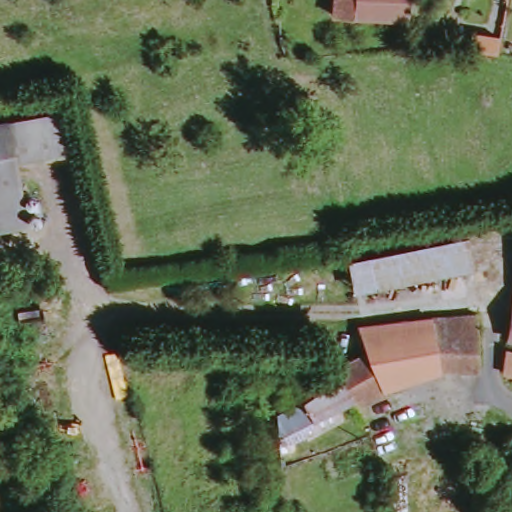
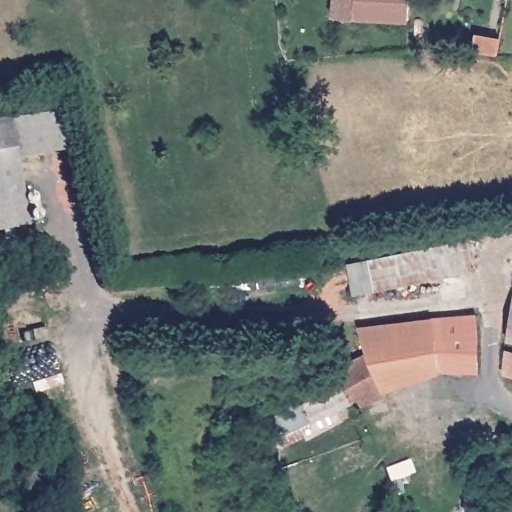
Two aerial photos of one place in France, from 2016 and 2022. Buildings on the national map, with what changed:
unchanged [(334,16),(335,0),(412,0),(412,21),(334,16)]
unchanged [(474,37),(497,42),(494,57),(471,53),(474,37)]
unchanged [(38,225),(0,232),(0,126),(15,124),(38,225)]
unchanged [(378,291),(371,258),(469,240),(475,274),(378,291)]
unchanged [(448,365),(418,369),(388,381),(390,387),(367,397),(351,366),(377,352),(367,325),(486,312),(485,367),(448,365)]
unchanged [(512,319),(512,342),(509,342),(512,319)]
unchanged [(512,349),(512,365),(507,363),(511,348),(512,349)]
unchanged [(345,373),(358,396),(288,441),(286,413),(345,373)]

